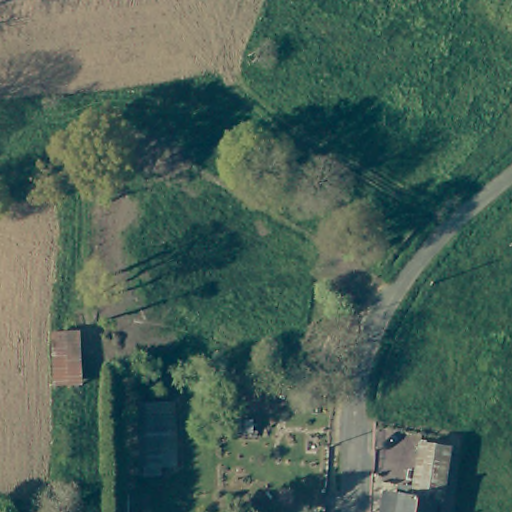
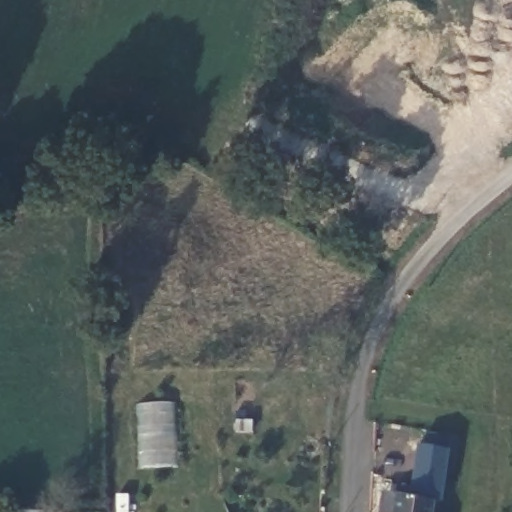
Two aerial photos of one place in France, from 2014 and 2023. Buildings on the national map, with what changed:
demolished [(82,386),(54,388),(50,335),(81,331),(82,386)]
unchanged [(412,477),(417,443),(448,448),(443,481),(412,477)]
unchanged [(432,504),(432,512),(394,512),(400,483),(412,485),(412,477),(443,481),(441,499),(432,504)]

